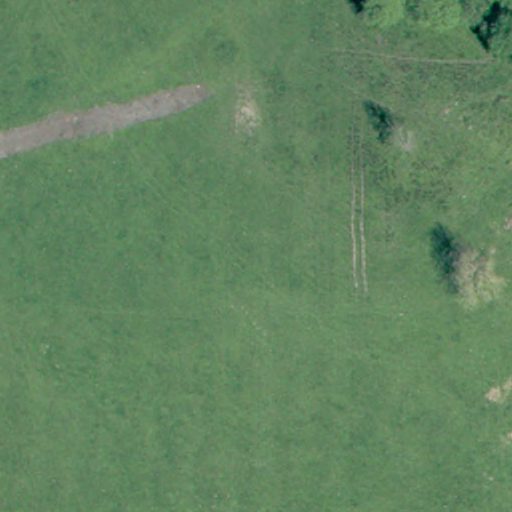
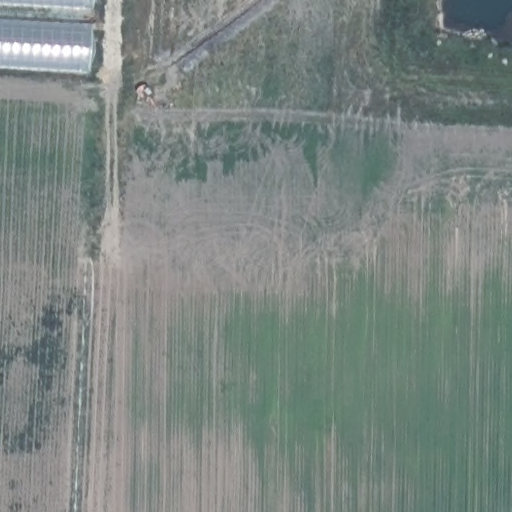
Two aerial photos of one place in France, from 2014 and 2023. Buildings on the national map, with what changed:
new [(95,12),(0,7),(0,0),(96,0),(95,12)]
new [(91,76),(0,71),(0,22),(94,27),(91,76)]

